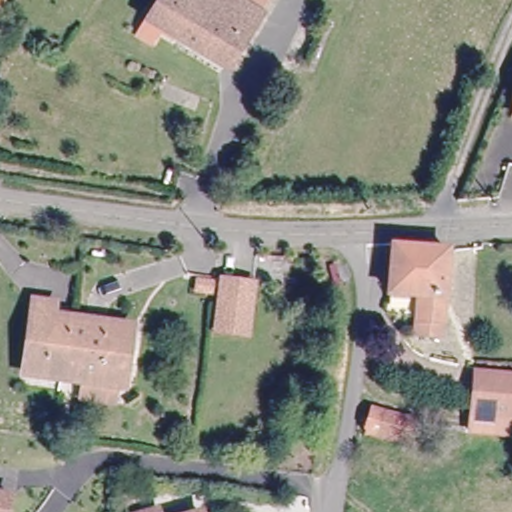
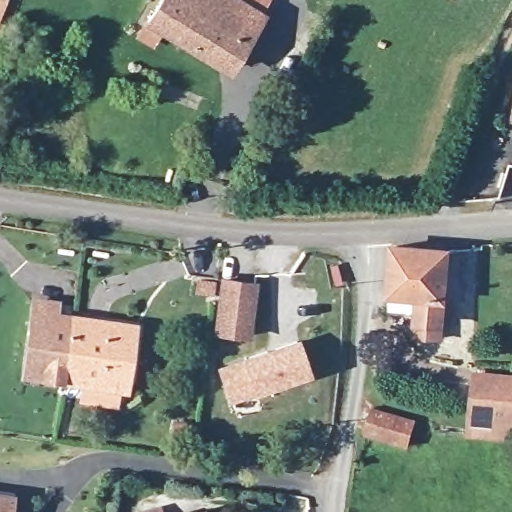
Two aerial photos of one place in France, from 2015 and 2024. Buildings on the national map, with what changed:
unchanged [(143,20),(156,0),(230,0),(253,14),(255,15),(222,69),(156,29),(147,43),(134,35),(143,20)]
unchanged [(253,14),(230,0),(262,0),(253,14)]
unchanged [(448,250),(442,322),(441,338),(415,336),(416,320),(418,295),(390,293),(394,246),(448,250)]
unchanged [(247,335),(216,332),(223,279),(253,283),(247,335)]
unchanged [(212,293),(196,291),(198,280),(213,282),(212,293)]
unchanged [(76,402),(79,387),(19,378),(26,328),(29,306),(49,310),(47,320),(67,323),(126,332),(120,379),(118,392),(112,391),(109,407),(76,402)]
new [(244,361),(244,358),(295,341),(306,372),(229,398),(220,369),(244,361)]
unchanged [(512,376),(512,417),(473,413),(477,373),(512,376)]
unchanged [(372,410),(412,421),(406,445),(365,434),(372,410)]
unchanged [(473,413),(512,417),(512,437),(471,432),(473,413)]
unchanged [(187,440),(172,438),(174,423),(189,425),(187,440)]
unchanged [(4,492),(2,512),(0,512),(0,491),(4,492)]
unchanged [(159,512),(150,512),(158,509),(159,512)]

